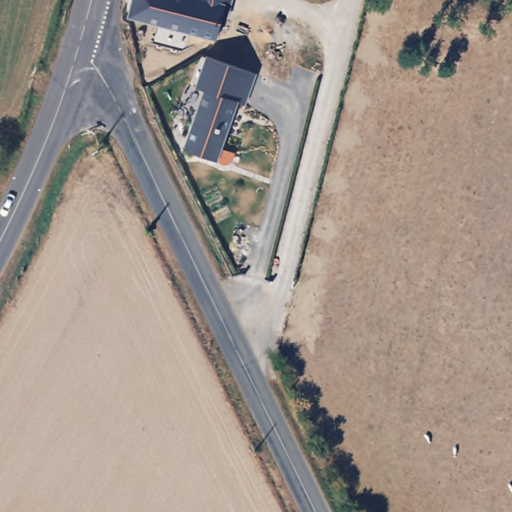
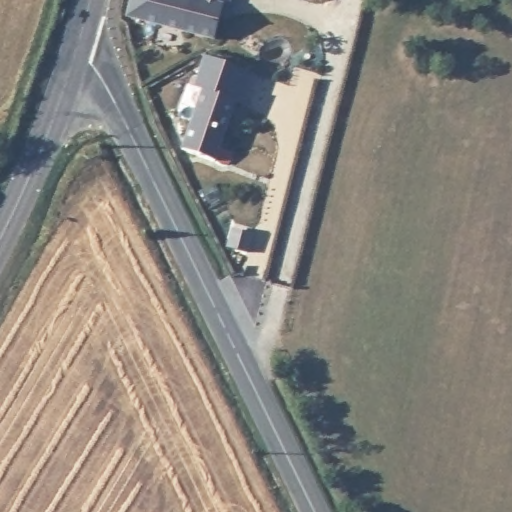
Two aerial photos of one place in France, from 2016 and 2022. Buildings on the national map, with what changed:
unchanged [(215,37),(126,13),(130,0),(230,0),(225,17),(222,28),(217,26),(215,37)]
unchanged [(189,85),(200,55),(249,73),(237,103),(230,100),(210,156),(176,144),(197,88),(189,85)]

